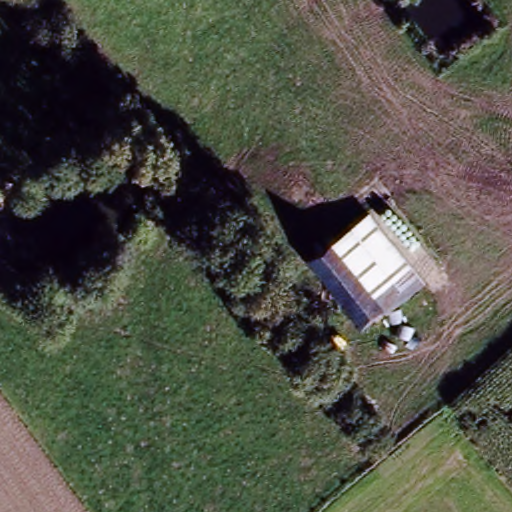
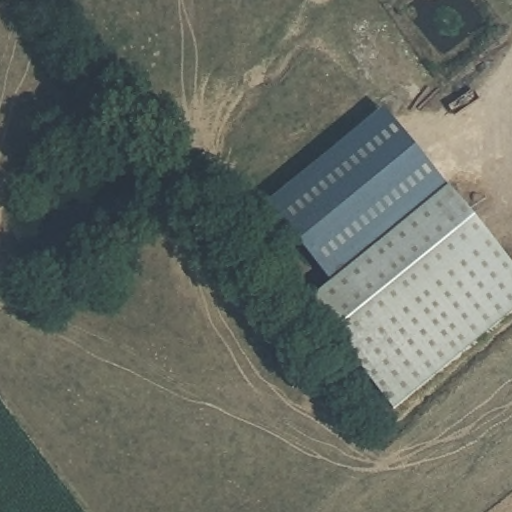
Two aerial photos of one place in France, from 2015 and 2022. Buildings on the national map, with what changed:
new [(512,315),(394,411),(309,307),(333,287),(268,206),(385,112),(512,266),(512,315)]
demolished [(370,281),(334,240),(366,213),(421,277),(413,283),(395,262),(370,281)]
demolished [(362,326),(306,259),(332,237),(334,240),(370,281),(395,262),(413,283),(362,326)]

